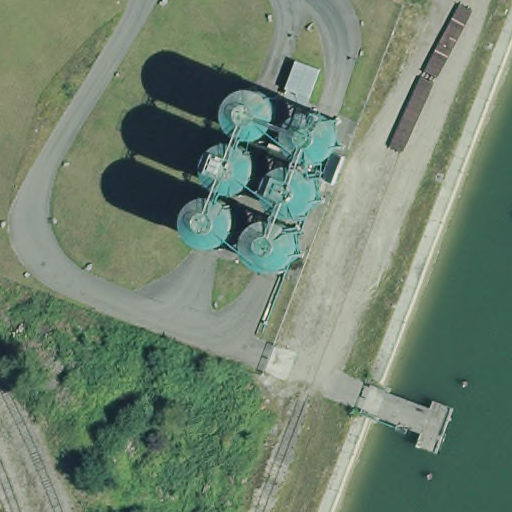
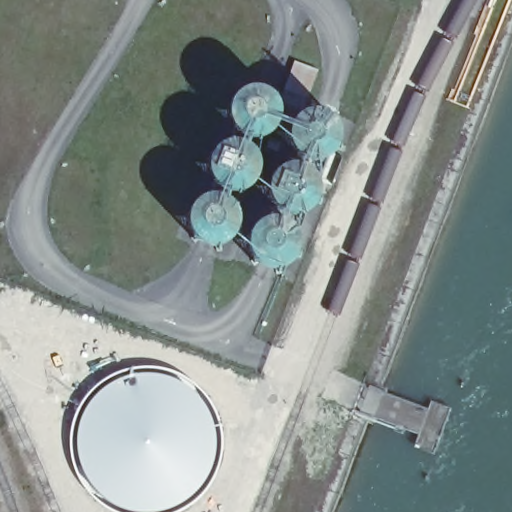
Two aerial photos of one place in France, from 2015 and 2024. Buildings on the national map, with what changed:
unchanged [(236,126),(238,114),(244,95),(254,84),(265,84),(341,111),(350,129),(317,238),(302,262),(284,263),(245,247),(207,238),(194,224),(217,157),(236,126)]
new [(73,423),(75,415),(79,407),(84,398),(90,392),(96,385),(103,380),(111,375),(119,371),(128,368),(137,367),(146,366),(155,367),(164,368),(172,371),(181,375),(189,380),(196,385),(202,392),(208,398),(213,407),(217,415),(219,423),(221,432),(222,442),(221,451),(219,460),(217,468),(213,477),(208,485),(202,492),(196,498),(189,503),(181,508),(172,512),(119,512),(111,508),(103,503),(96,498),(90,492),(84,485),(79,477),(75,468),(73,460),(71,451),(70,442),(71,432),(73,423)]

